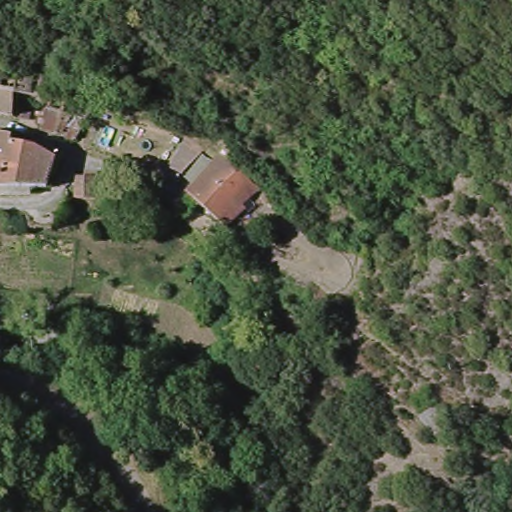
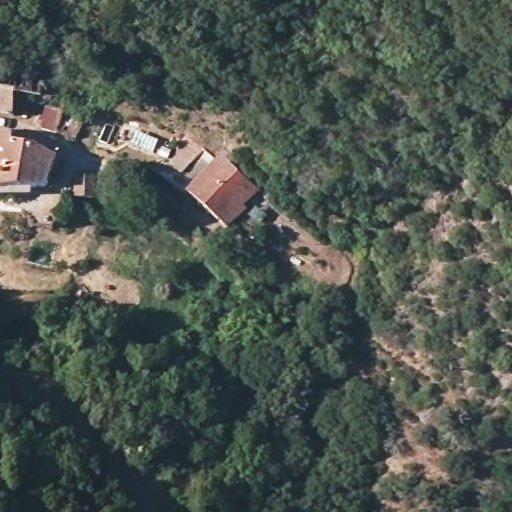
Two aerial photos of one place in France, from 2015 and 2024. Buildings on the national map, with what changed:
unchanged [(51,93),(26,93),(22,112),(0,110),(0,65),(49,66),(51,93)]
unchanged [(82,114),(80,138),(45,133),(53,109),(82,114)]
unchanged [(0,127),(16,130),(15,137),(36,141),(59,154),(53,184),(51,186),(5,185),(0,185),(0,127)]
unchanged [(173,161),(195,136),(213,149),(191,176),(183,183),(164,167),(171,159),(173,161)]
unchanged [(227,157),(266,190),(248,211),(253,215),(236,233),(206,207),(195,196),(226,158),(227,157)]
unchanged [(143,194),(113,186),(118,164),(148,172),(143,194)]
unchanged [(431,391),(454,412),(438,423),(418,407),(431,391)]

